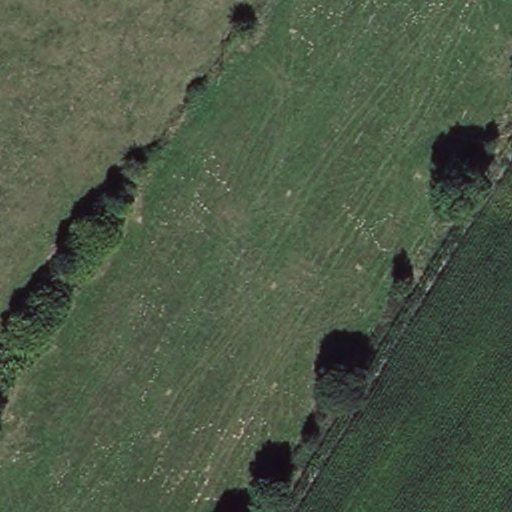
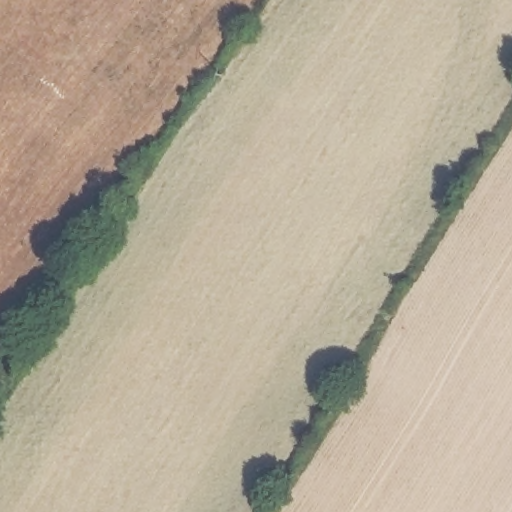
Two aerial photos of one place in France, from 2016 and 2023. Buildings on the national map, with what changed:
[]

